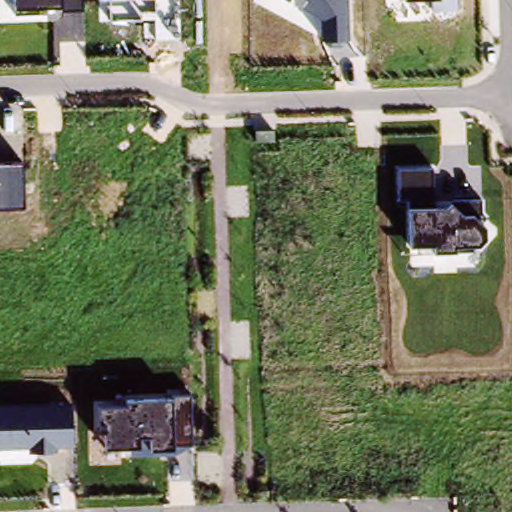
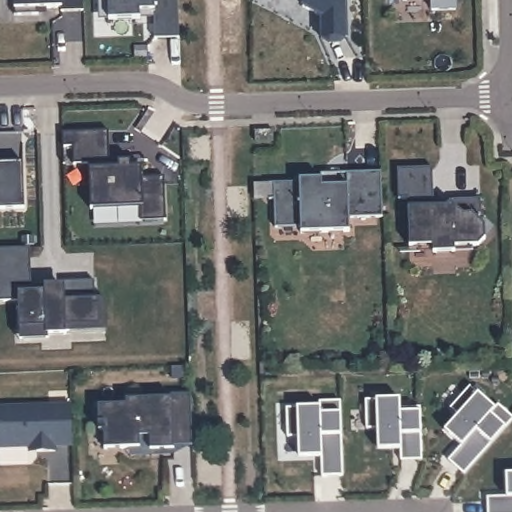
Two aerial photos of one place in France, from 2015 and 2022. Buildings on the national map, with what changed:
unchanged [(83,8),(60,10),(60,6),(48,6),(48,13),(14,14),(14,0),(83,0),(83,8)]
unchanged [(181,38),(143,39),(143,20),(97,19),(96,0),(179,0),(181,38)]
unchanged [(346,39),(341,45),(328,46),(321,38),(321,19),(301,8),(304,0),(346,0),(346,39)]
unchanged [(457,8),(429,10),(429,0),(456,0),(457,8)]
new [(108,169),(120,168),(118,162),(132,160),(133,167),(141,167),(142,181),(163,178),(166,219),(142,221),(141,207),(92,208),(90,169),(89,162),(74,163),(73,145),(64,146),(64,133),(108,132),(108,169)]
unchanged [(24,208),(0,209),(0,164),(22,163),(24,208)]
unchanged [(482,221),(485,225),(484,240),(479,246),(472,247),(473,252),(433,252),(434,245),(409,246),(409,205),(400,205),(399,168),(434,166),(436,199),(481,200),(482,221)]
new [(299,178),(321,177),(321,172),(336,171),(336,184),(347,184),(347,171),(381,170),(382,195),(348,196),(349,230),(301,231),(301,225),(275,226),(274,198),(254,199),(254,182),(274,182),(299,181),(299,178)]
new [(19,325),(19,297),(0,298),(0,246),(28,245),(28,252),(29,288),(64,287),(64,281),(94,280),(95,299),(100,299),(101,326),(101,333),(67,334),(46,335),(46,336),(20,337),(19,325)]
new [(457,414),(449,407),(469,385),(494,407),(497,403),(512,417),(512,419),(463,473),(447,459),(460,445),(444,429),(445,428),(457,414)]
unchanged [(125,406),(125,399),(169,398),(191,395),(191,443),(173,443),(174,449),(151,448),(151,435),(139,436),(139,446),(106,446),(106,425),(100,416),(100,405),(125,406)]
new [(376,432),(366,432),(365,397),(399,396),(399,405),(419,405),(421,459),(400,459),(399,447),(377,448),(377,445),(376,432)]
new [(298,454),(298,436),(286,436),(286,407),(319,406),(319,400),(340,400),(342,474),(321,475),(321,456),(298,456),(298,454)]
unchanged [(73,446),(57,445),(58,452),(29,451),(29,446),(0,447),(0,403),(73,403),(73,446)]
new [(507,473),(512,473),(512,512),(485,512),(485,496),(504,495),(504,473),(507,473)]

